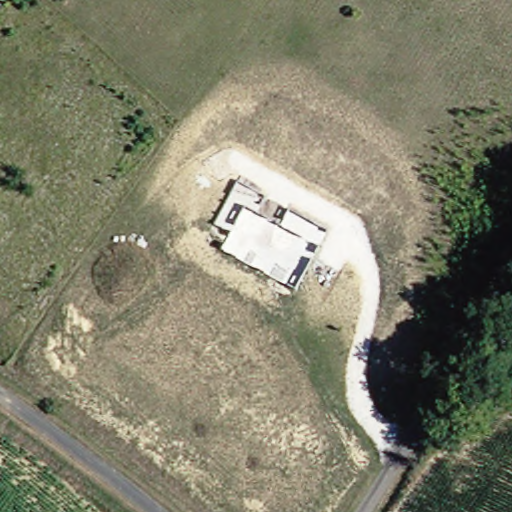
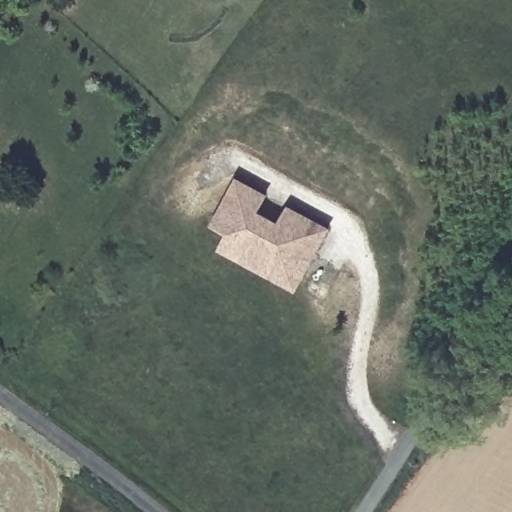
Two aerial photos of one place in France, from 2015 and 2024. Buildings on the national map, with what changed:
new [(295,289),(222,250),(230,233),(214,225),(237,181),(265,196),(256,212),(280,227),(288,209),(327,230),(295,289)]

